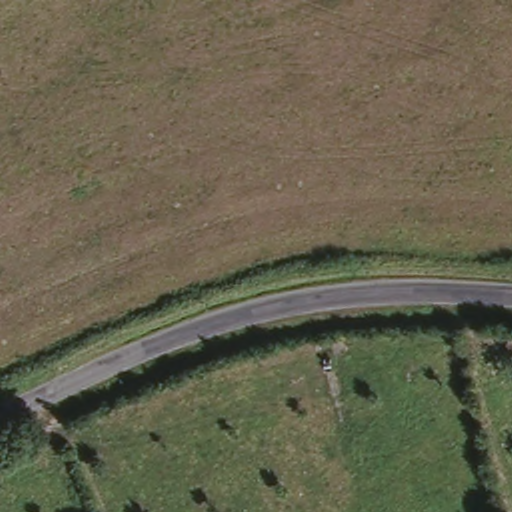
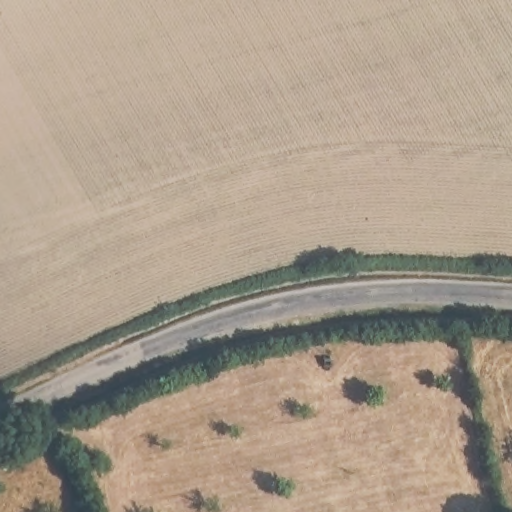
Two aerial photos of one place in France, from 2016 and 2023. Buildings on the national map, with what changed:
[]

